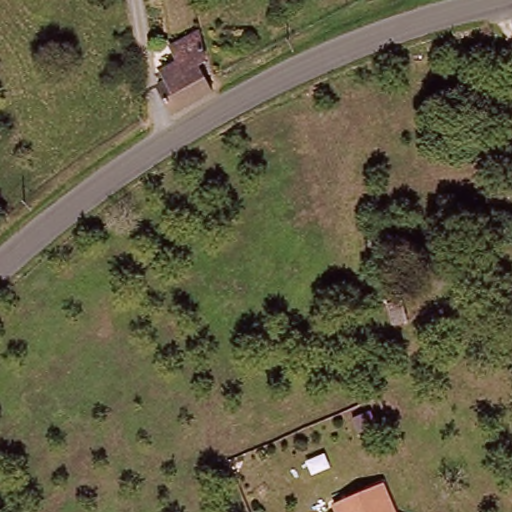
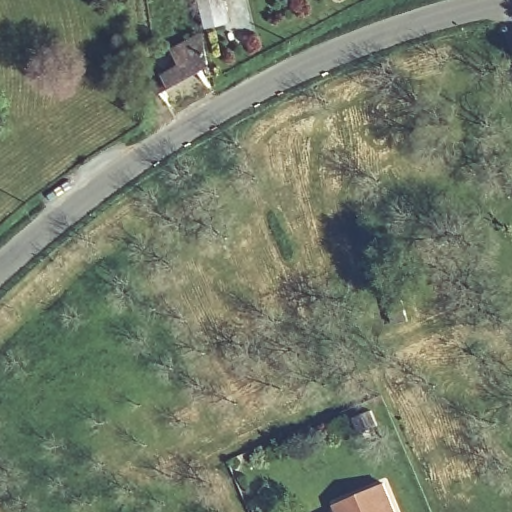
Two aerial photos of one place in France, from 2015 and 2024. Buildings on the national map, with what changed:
unchanged [(157,74),(173,67),(167,46),(192,36),(205,86),(207,94),(170,111),(157,74)]
unchanged [(393,512),(334,512),(330,503),(345,497),(380,482),(393,512)]

